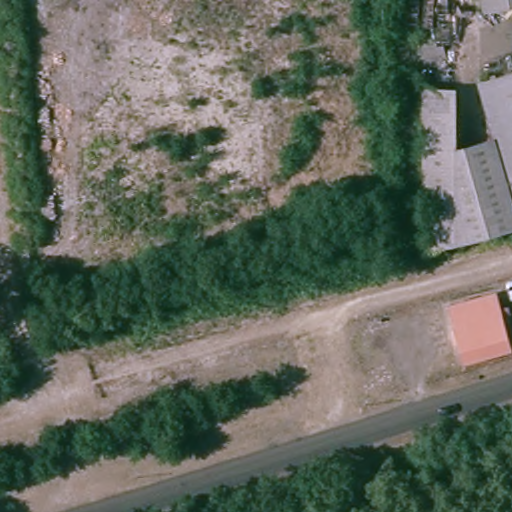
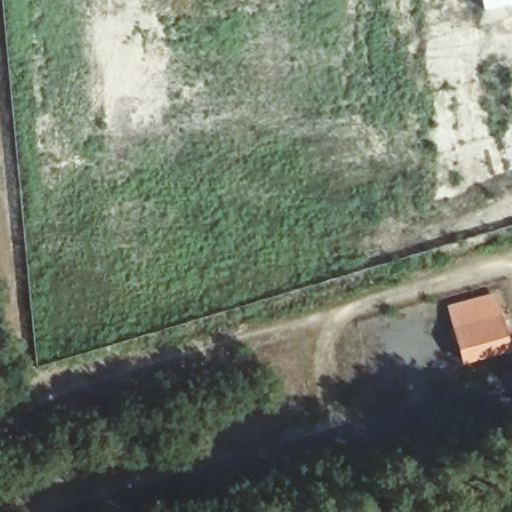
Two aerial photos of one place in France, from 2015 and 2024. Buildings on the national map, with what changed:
unchanged [(482,0),(512,0),(512,4),(484,10),(482,0)]
demolished [(453,41),(457,133),(495,124),(484,76),(512,67),(512,224),(421,250),(416,41),(453,41)]
unchanged [(469,364),(454,316),(450,301),(485,289),(490,304),(503,351),(469,364)]

